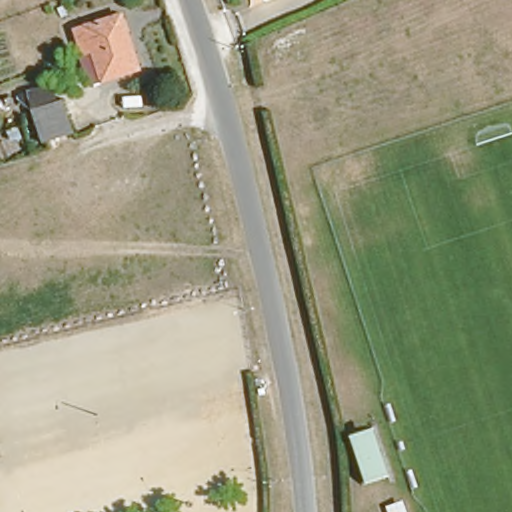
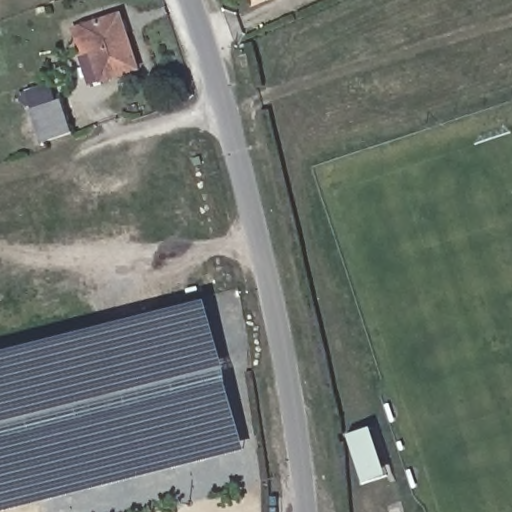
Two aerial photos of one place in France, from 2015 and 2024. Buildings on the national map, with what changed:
unchanged [(93,80),(91,74),(84,54),(87,53),(77,29),(123,11),(140,57),(142,63),(93,80)]
unchanged [(76,131),(43,142),(32,109),(63,98),(76,131)]
new [(207,303),(224,369),(0,427),(0,355),(207,303)]
new [(224,369),(247,452),(8,512),(2,512),(0,506),(0,427),(224,369)]
unchanged [(357,448),(352,433),(373,426),(377,439),(383,458),(389,475),(368,482),(363,466),(357,448)]
unchanged [(408,508),(398,512),(393,499),(404,495),(408,508)]

